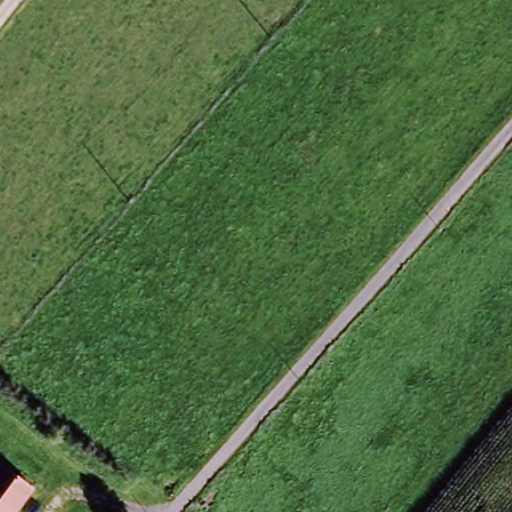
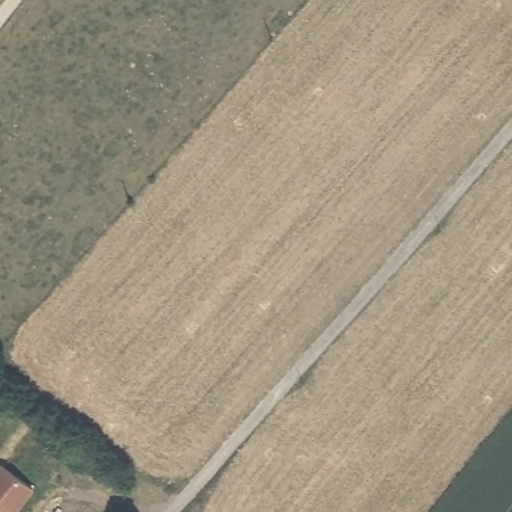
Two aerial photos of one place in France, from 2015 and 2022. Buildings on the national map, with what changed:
unchanged [(33,492),(18,512),(0,512),(0,466),(33,492)]

